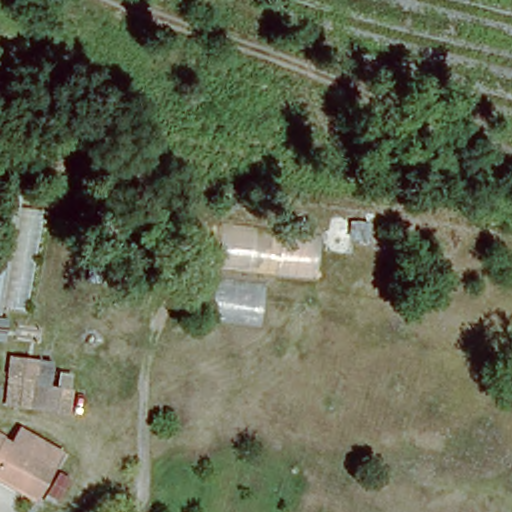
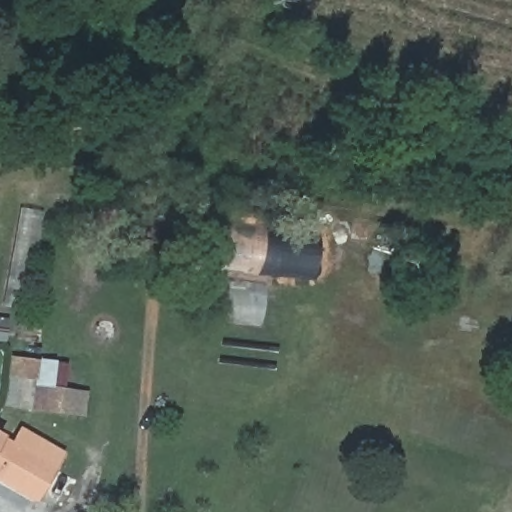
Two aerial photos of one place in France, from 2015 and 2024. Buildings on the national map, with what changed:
unchanged [(249,287),(244,321),(207,317),(210,282),(249,287)]
unchanged [(40,361),(36,386),(73,390),(68,416),(2,408),(8,357),(40,361)]
unchanged [(36,495),(0,479),(0,437),(10,442),(16,428),(59,447),(36,495)]

